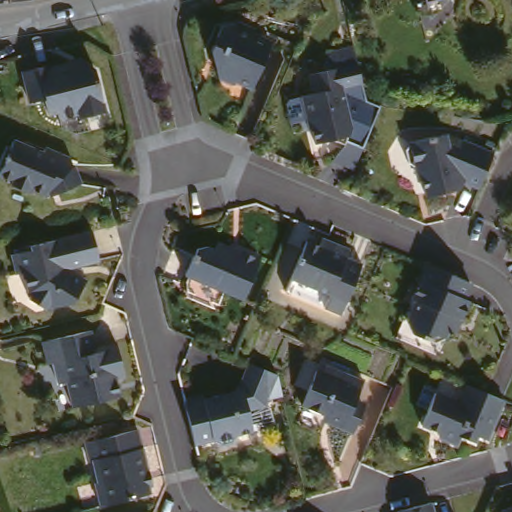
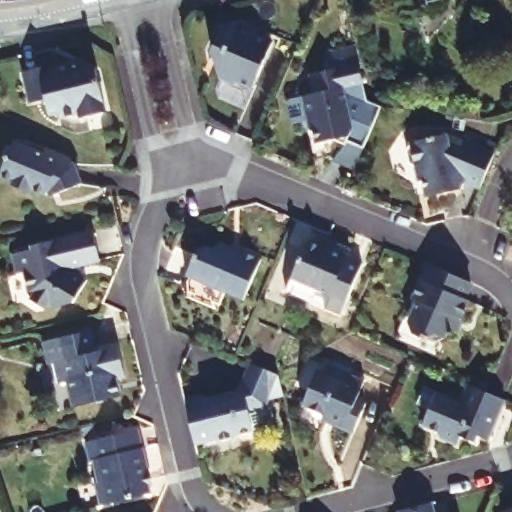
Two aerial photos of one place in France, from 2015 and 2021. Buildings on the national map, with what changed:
unchanged [(220,27),(240,25),(256,32),(253,37),(270,45),(250,91),(236,85),(230,87),(215,79),(213,74),(208,51),(220,27)]
unchanged [(330,54),(342,51),(353,48),(357,66),(365,100),(366,104),(381,109),(372,129),(361,153),(343,145),(342,149),(329,143),(312,146),(307,122),(303,123),(297,99),(310,96),(306,78),(333,71),(330,54)]
unchanged [(76,63),(90,72),(100,116),(74,121),(73,116),(53,121),(52,115),(42,116),(40,101),(24,105),(17,74),(48,67),(49,69),(76,63)]
unchanged [(477,192),(471,189),(462,185),(459,192),(448,194),(446,195),(445,192),(440,171),(435,146),(433,140),(445,138),(448,153),(458,151),(462,144),(492,156),(479,187),(477,192)]
unchanged [(435,146),(440,171),(445,192),(446,195),(448,194),(459,192),(458,193),(441,197),(440,192),(423,196),(418,175),(414,176),(413,170),(407,166),(404,154),(408,148),(407,146),(433,140),(435,146)]
unchanged [(62,161),(65,169),(71,167),(79,189),(49,200),(47,196),(46,195),(44,200),(29,193),(27,197),(10,189),(12,186),(0,180),(0,174),(1,173),(0,173),(0,163),(6,150),(10,151),(13,145),(42,158),(45,154),(62,161)]
unchanged [(16,253),(90,236),(90,237),(97,265),(73,270),(75,279),(84,284),(71,306),(50,311),(46,308),(44,313),(42,312),(27,304),(30,299),(26,297),(21,276),(14,278),(9,258),(17,257),(17,254),(16,253)]
unchanged [(313,253),(317,245),(345,257),(342,265),(356,272),(334,321),(280,297),(302,248),(313,253)]
unchanged [(232,257),(235,250),(258,261),(249,282),(240,302),(182,275),(196,247),(206,246),(214,250),(215,248),(225,253),(232,257)]
unchanged [(431,257),(474,275),(467,292),(472,294),(459,325),(452,322),(441,348),(400,331),(431,257)]
unchanged [(82,333),(85,352),(108,346),(116,382),(107,384),(112,400),(63,412),(57,387),(49,389),(44,367),(37,368),(32,345),(82,333)]
unchanged [(198,402),(234,393),(233,388),(237,387),(248,363),(254,366),(260,369),(276,375),(278,391),(280,396),(265,399),(260,408),(243,412),(249,433),(231,438),(232,441),(228,447),(218,449),(211,446),(210,443),(192,447),(187,428),(186,421),(184,414),(182,406),(198,402)]
unchanged [(345,443),(326,434),(327,429),(294,415),(309,380),(315,383),(319,373),(321,372),(327,370),(345,377),(342,383),(358,389),(351,407),(358,411),(357,414),(345,443)]
unchanged [(463,383),(485,392),(492,396),(501,399),(483,440),(473,436),(470,443),(456,437),(452,446),(435,439),(433,433),(417,426),(432,395),(454,405),(463,383)]
unchanged [(148,472),(145,473),(151,493),(100,505),(95,483),(99,482),(94,461),(90,461),(86,443),(138,429),(148,472)]
unchanged [(428,508),(429,512),(410,512),(428,508)]
unchanged [(502,512),(512,508),(512,512),(502,512)]

